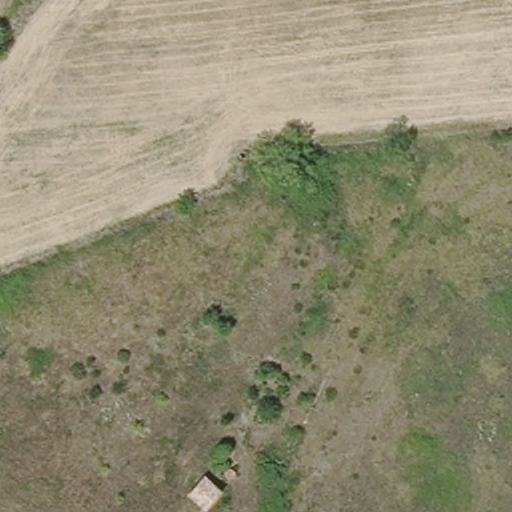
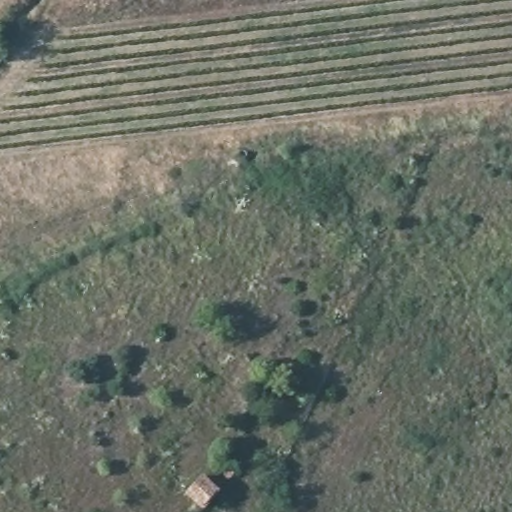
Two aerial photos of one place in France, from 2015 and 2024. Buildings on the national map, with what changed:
unchanged [(187,493),(207,476),(220,492),(205,508),(187,493)]

